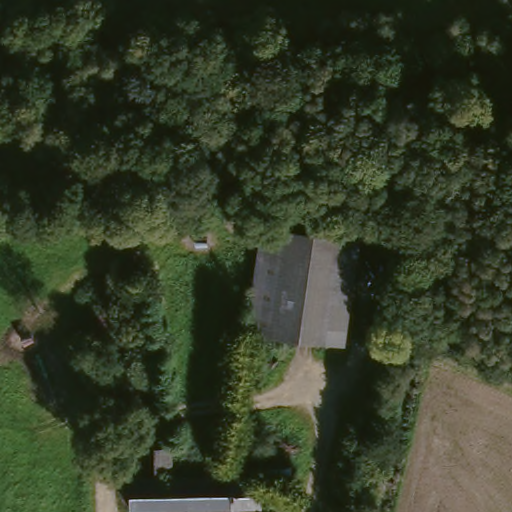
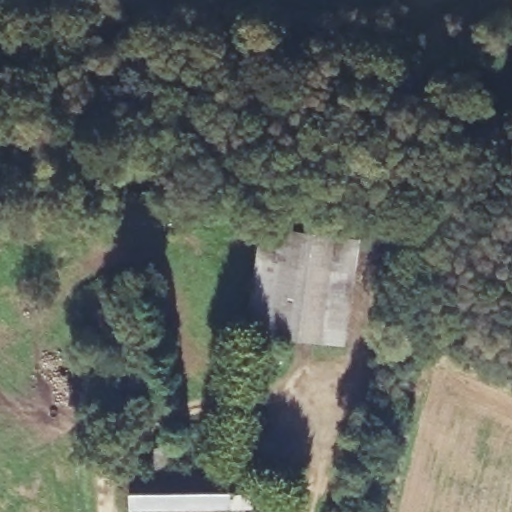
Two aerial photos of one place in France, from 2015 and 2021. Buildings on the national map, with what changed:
unchanged [(251,230),(349,239),(339,346),(242,337),(251,230)]
unchanged [(153,397),(107,404),(92,325),(139,317),(153,397)]
unchanged [(172,512),(126,512),(125,483),(151,482),(149,451),(169,450),(170,480),(234,478),(261,480),(262,509),(172,512)]

